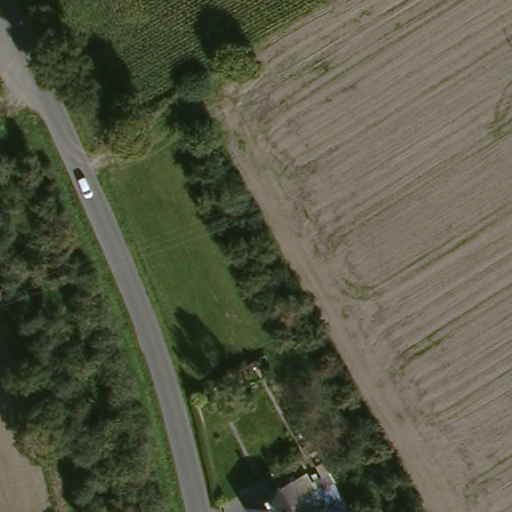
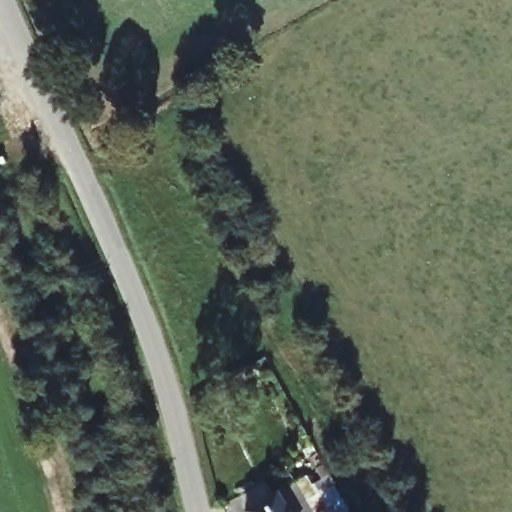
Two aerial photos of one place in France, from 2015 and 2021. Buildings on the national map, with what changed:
unchanged [(274,491),(277,495),(305,478),(312,487),(327,477),(346,512),(242,512),(241,511),(274,491)]

